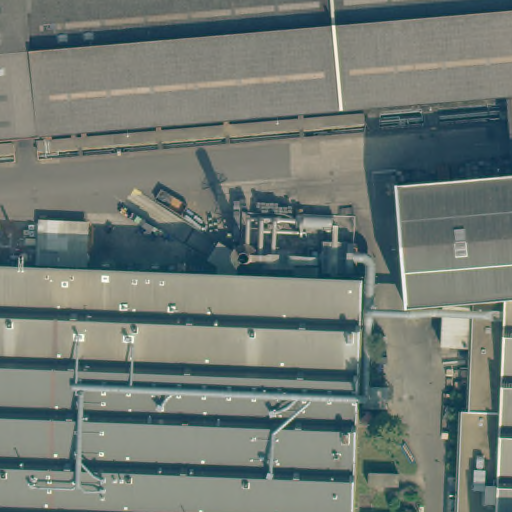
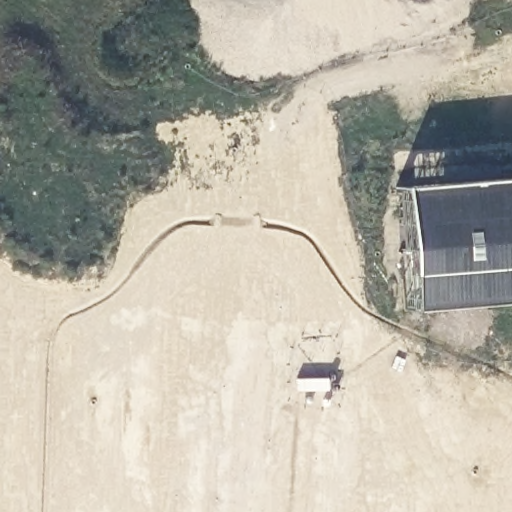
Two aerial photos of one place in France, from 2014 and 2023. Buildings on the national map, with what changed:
demolished [(512,94),(509,95),(0,137),(0,0),(512,0),(512,94)]
new [(512,300),(476,302),(407,308),(397,185),(512,176),(512,300)]
demolished [(471,412),(474,345),(476,308),(476,302),(407,308),(397,185),(430,182),(512,176),(512,512),(459,512),(463,411),(471,412)]
demolished [(358,281),(350,512),(0,512),(0,269),(358,281)]
demolished [(395,482),(394,494),(365,492),(365,480),(395,482)]

